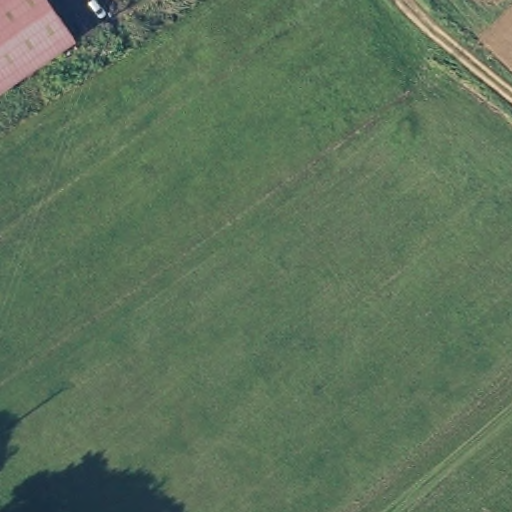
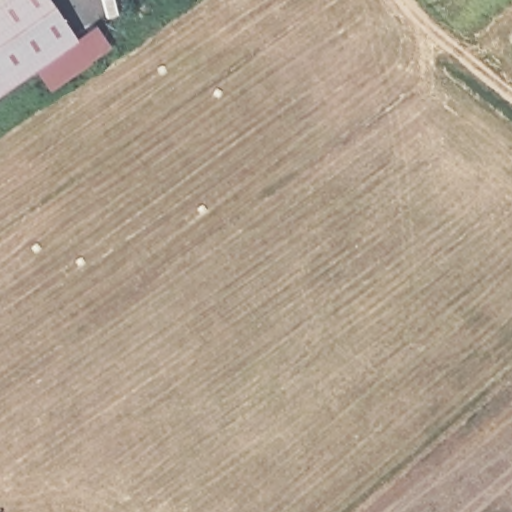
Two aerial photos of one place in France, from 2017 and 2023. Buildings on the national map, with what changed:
unchanged [(71,48),(0,95),(0,0),(38,0),(71,48)]

